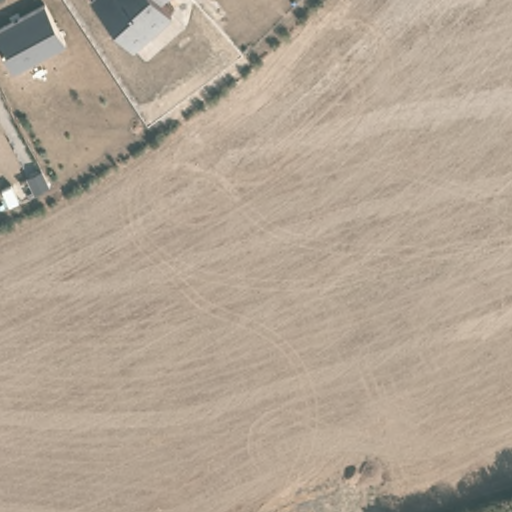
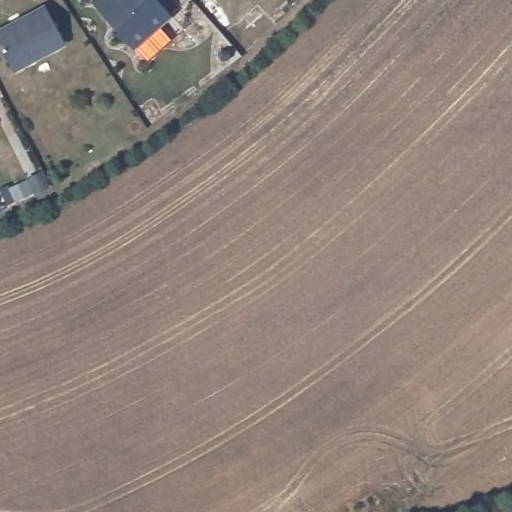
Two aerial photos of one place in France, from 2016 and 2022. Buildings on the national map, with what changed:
unchanged [(171,14),(132,50),(91,0),(160,0),(171,14)]
unchanged [(45,3),(65,42),(11,71),(0,48),(0,28),(45,3)]

